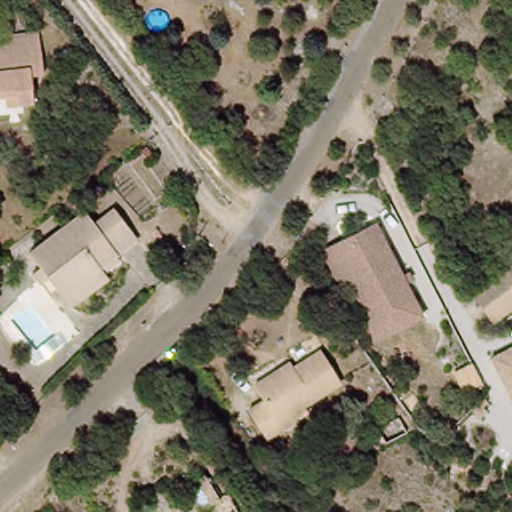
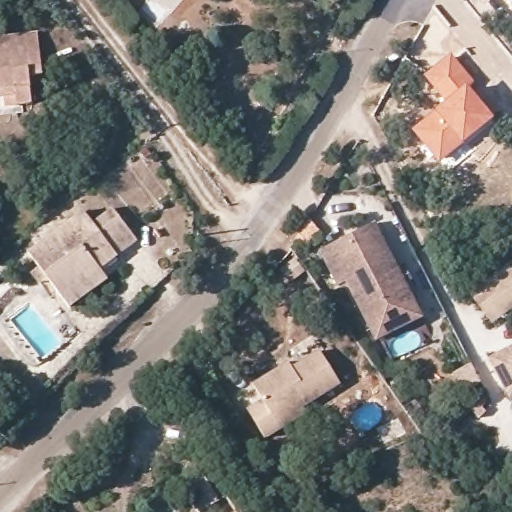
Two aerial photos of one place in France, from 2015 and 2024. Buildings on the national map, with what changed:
new [(509,0),(512,0),(512,4),(509,0)]
unchanged [(46,84),(34,86),(33,105),(0,109),(0,36),(36,31),(46,84)]
new [(449,51),(474,81),(468,85),(443,100),(422,74),(449,51)]
new [(443,100),(468,85),(494,118),(438,162),(410,129),(443,100)]
unchanged [(70,307),(62,297),(29,253),(86,209),(95,221),(114,206),(139,238),(100,268),(108,279),(70,307)]
unchanged [(354,299),(343,305),(316,253),(375,223),(420,317),(374,339),(354,299)]
unchanged [(512,262),(512,317),(491,329),(461,300),(512,262)]
unchanged [(507,349),(510,355),(512,354),(512,397),(507,401),(487,359),(507,349)]
unchanged [(280,431),(263,442),(245,413),(261,402),(251,386),(274,372),(287,363),(294,373),(316,359),(334,387),(293,413),(297,420),(280,431)]
unchanged [(218,500),(199,512),(195,512),(184,495),(206,481),(218,500)]

